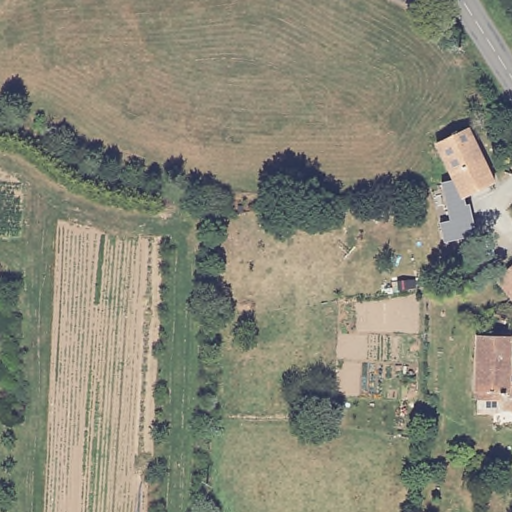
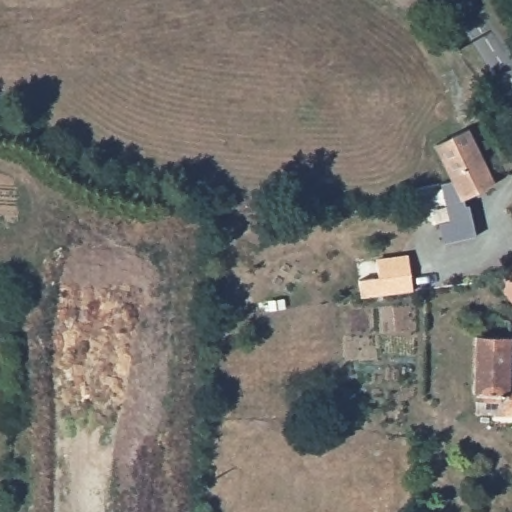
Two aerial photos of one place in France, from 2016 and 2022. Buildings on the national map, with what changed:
unchanged [(496,182),(466,199),(470,206),(477,238),(445,243),(442,222),(450,219),(443,182),(453,180),(435,143),(469,127),(496,182)]
demolished [(485,283),(474,273),(512,238),(512,260),(485,283)]
new [(361,298),(358,280),(379,277),(376,258),(409,254),(414,290),(361,298)]
unchanged [(497,277),(512,264),(512,298),(497,277)]
unchanged [(478,412),(478,392),(476,389),(477,335),(484,331),(501,305),(511,302),(512,304),(512,351),(512,382),(512,383),(512,414),(478,412)]

